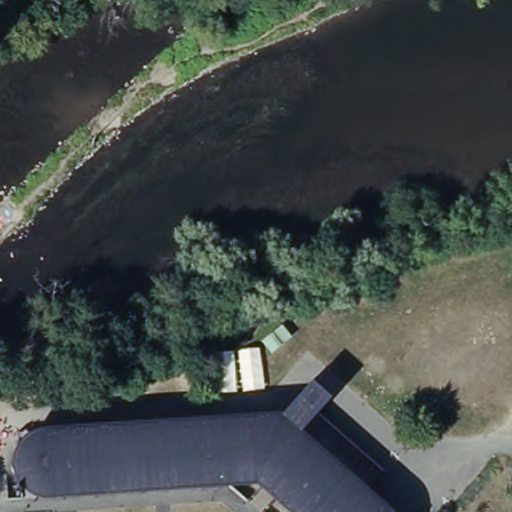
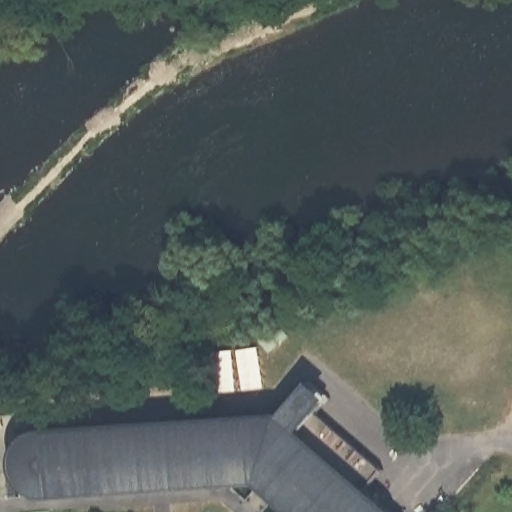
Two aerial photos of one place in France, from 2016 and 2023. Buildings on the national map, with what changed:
unchanged [(41,494),(31,487),(19,473),(16,462),(17,447),(24,438),(33,430),(282,414),(313,381),(334,400),(305,431),(394,507),(396,512),(299,512),(260,476),(41,494)]

